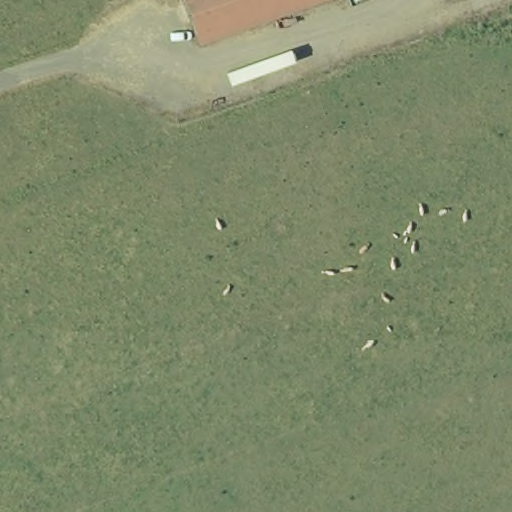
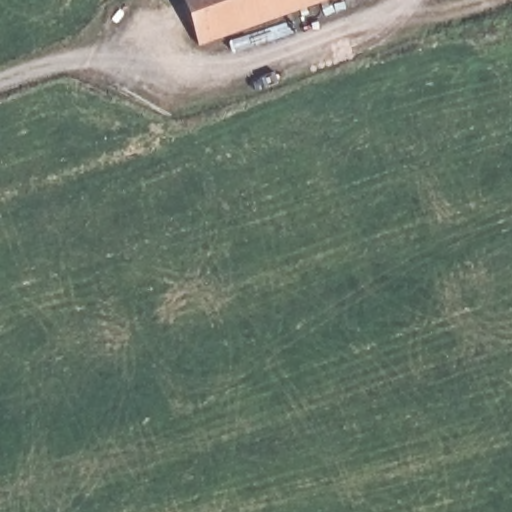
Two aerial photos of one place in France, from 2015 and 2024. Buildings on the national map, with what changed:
unchanged [(318,7),(200,52),(200,50),(187,19),(180,0),(337,0),(318,7)]

